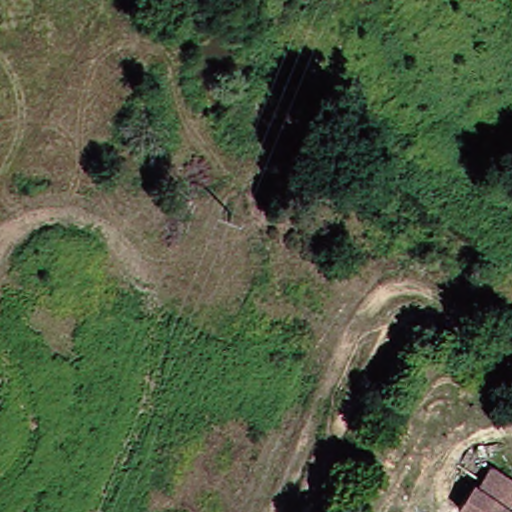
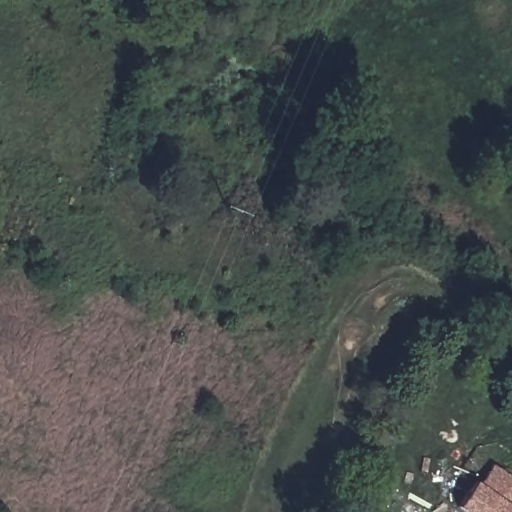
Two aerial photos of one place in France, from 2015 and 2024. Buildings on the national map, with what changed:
unchanged [(464,478),(470,482),(501,506),(512,492),(512,512),(461,512),(449,503),(464,478)]

